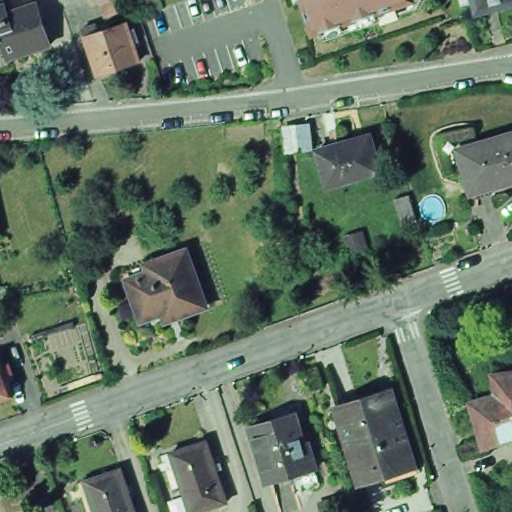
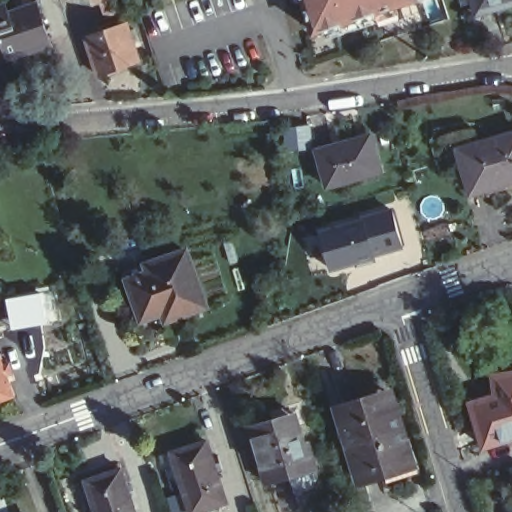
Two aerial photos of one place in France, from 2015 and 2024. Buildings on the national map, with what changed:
unchanged [(317,30),(307,0),(407,0),(317,30)]
unchanged [(476,0),(512,0),(512,5),(480,14),(476,0)]
unchanged [(0,48),(0,3),(2,2),(5,11),(34,1),(48,42),(16,53),(7,56),(4,47),(0,48)]
unchanged [(95,67),(83,30),(80,20),(94,16),(97,25),(124,16),(125,23),(130,22),(134,34),(130,35),(137,55),(95,67)]
unchanged [(320,146),(294,149),(290,122),(317,120),(320,146)]
unchanged [(459,157),(456,147),(470,143),(512,131),(512,178),(468,191),(459,157)]
unchanged [(377,133),(387,170),(334,185),(324,148),(377,133)]
demolished [(397,196),(411,191),(418,217),(405,221),(397,196)]
new [(322,230),(365,217),(364,216),(394,207),(405,244),(375,251),(376,254),(333,266),(322,230)]
demolished [(295,231),(305,230),(309,258),(298,259),(295,231)]
unchanged [(166,315),(145,322),(130,283),(152,275),(149,267),(188,254),(208,309),(180,320),(169,323),(166,315)]
unchanged [(5,375),(0,376),(0,368),(2,367),(5,375)]
unchanged [(489,443),(475,400),(493,395),(492,386),(500,385),(499,373),(511,371),(512,371),(512,435),(489,443)]
unchanged [(0,400),(0,381),(7,398),(0,400)]
unchanged [(417,465),(382,475),(380,466),(357,473),(335,401),(375,390),(386,386),(392,406),(400,432),(406,430),(417,465)]
unchanged [(292,491),(286,475),(265,482),(246,425),(290,411),(299,440),(304,438),(313,466),(319,482),(292,491)]
unchanged [(197,512),(192,512),(183,485),(172,489),(161,454),(172,450),(208,438),(229,502),(197,512)]
unchanged [(88,510),(77,477),(87,474),(121,462),(129,485),(135,483),(137,490),(131,492),(138,512),(99,512),(97,507),(88,510)]

